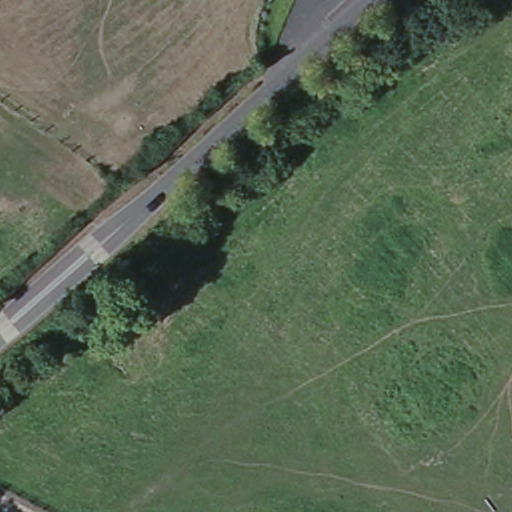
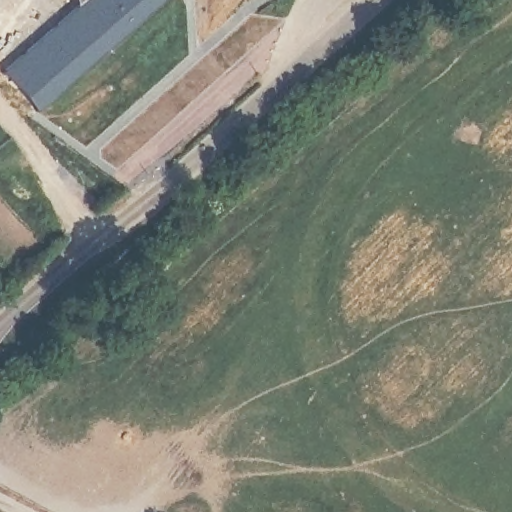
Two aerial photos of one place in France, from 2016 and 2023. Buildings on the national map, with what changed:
new [(182,0),(40,109),(10,66),(91,0),(182,0)]
new [(75,0),(83,0),(77,5),(75,0)]

